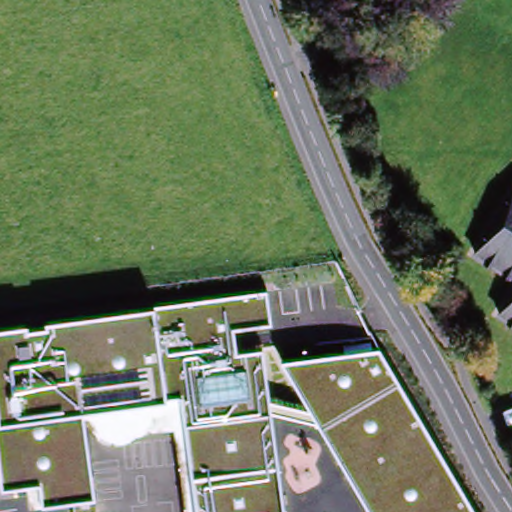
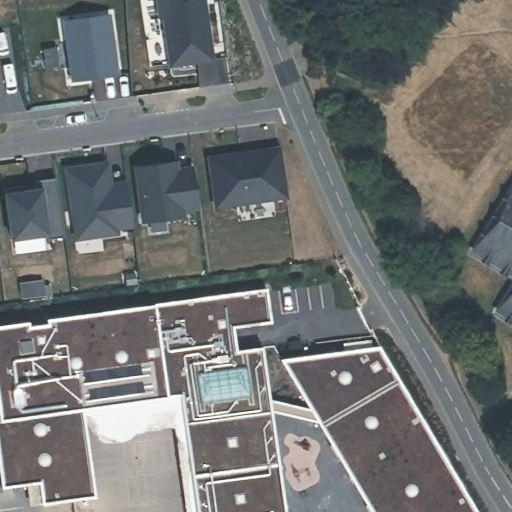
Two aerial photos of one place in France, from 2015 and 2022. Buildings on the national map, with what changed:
new [(161,15),(156,15),(154,0),(202,0),(209,56),(168,62),(161,15)]
new [(62,19),(106,12),(113,72),(68,76),(62,19)]
new [(212,160),(282,150),(289,199),(219,209),(212,160)]
new [(140,185),(136,185),(132,166),(172,160),(173,166),(190,164),(195,205),(179,206),(180,211),(144,217),(140,185)]
new [(119,230),(120,235),(84,240),(79,208),(74,209),(69,170),(110,165),(113,185),(129,182),(129,187),(135,227),(119,230)]
new [(67,239),(50,241),(49,236),(14,241),(7,190),(27,188),(27,194),(43,191),(41,182),(59,180),(67,239)]
unchanged [(471,250),(512,185),(512,277),(471,250)]
unchanged [(498,308),(512,285),(512,316),(498,308)]
unchanged [(148,430),(133,436),(124,442),(118,443),(107,442),(98,439),(93,431),(91,430),(85,430),(95,497),(42,504),(40,505),(28,506),(26,487),(1,489),(0,478),(0,325),(28,320),(28,325),(45,323),(44,319),(267,287),(271,323),(234,328),(237,350),(263,347),(270,397),(309,408),(280,360),(345,350),(344,343),(370,339),(373,346),(380,346),(477,512),(368,512),(315,421),(271,411),(284,512),(185,512),(174,428),(148,430)]

